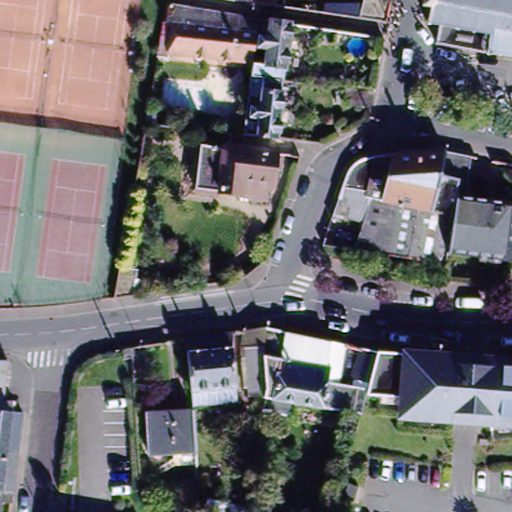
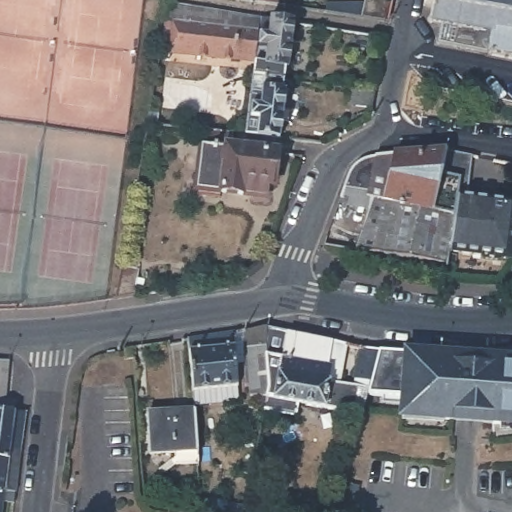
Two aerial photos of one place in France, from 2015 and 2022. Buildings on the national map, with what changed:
unchanged [(203,0),(280,0),(279,10),(203,0)]
unchanged [(394,0),(388,18),(331,11),(332,0),(340,0),(363,3),(364,0),(394,0)]
unchanged [(512,0),(512,58),(508,57),(507,60),(505,59),(505,56),(491,54),(491,56),(488,55),(488,53),(474,50),(474,51),(471,51),(471,50),(457,47),(457,49),(453,48),(454,46),(440,44),(440,45),(437,45),(437,44),(436,44),(436,40),(437,41),(440,27),(439,27),(439,25),(431,24),(431,25),(428,24),(428,23),(426,22),(426,20),(428,20),(431,8),(422,6),(423,0),(512,0)]
unchanged [(204,12),(257,21),(264,22),(262,40),(258,74),(171,57),(175,29),(169,27),(173,6),(204,12)]
unchanged [(264,22),(296,29),(290,74),(288,75),(286,92),(266,90),(267,79),(260,77),(264,41),(262,40),(264,22)]
unchanged [(284,105),(288,105),(282,149),(259,146),(261,130),(254,129),(256,111),(263,112),(266,90),(286,92),(284,105)]
unchanged [(373,95),(370,110),(345,109),(346,92),(373,94),(373,95)]
unchanged [(236,142),(234,156),(247,158),(281,161),(280,179),(277,179),(276,195),(271,195),(270,205),(225,201),(225,199),(230,156),(206,152),(208,138),(236,142)]
unchanged [(230,156),(225,199),(202,196),(206,152),(230,156)]
unchanged [(343,191),(347,179),(348,177),(350,175),(351,174),(352,172),(353,171),(355,170),(357,169),(358,167),(360,166),(361,165),(363,164),(365,163),(367,162),(369,161),(371,161),(374,160),(393,159),(405,158),(443,155),(437,184),(455,187),(454,194),(452,217),(448,253),(446,266),(409,261),(372,255),(355,253),(365,224),(334,216),(340,199),(343,191)]
unchanged [(512,207),(512,262),(448,253),(452,217),(454,194),(455,187),(437,184),(443,155),(470,161),(465,203),(512,207)]
unchanged [(138,271),(134,297),(114,300),(119,268),(138,271)]
unchanged [(268,331),(306,339),(294,402),(291,415),(260,408),(261,405),(254,404),(255,401),(257,394),(249,392),(247,355),(242,355),(243,333),(263,330),(265,330),(268,331)]
unchanged [(192,408),(191,393),(187,340),(238,334),(231,348),(235,387),(237,402),(192,408)]
unchanged [(498,425),(491,425),(490,428),(453,426),(453,423),(436,421),(436,425),(395,422),(396,419),(396,412),(385,411),(385,398),(366,397),(361,416),(322,408),(294,402),(306,339),(336,345),(327,383),(367,392),(369,385),(352,381),(359,351),(376,355),(412,357),(481,362),(488,362),(512,360),(512,433),(499,434),(498,425)]
unchanged [(7,366),(2,406),(13,408),(12,419),(22,420),(21,430),(11,430),(8,455),(18,455),(13,497),(12,507),(1,506),(0,512),(0,366),(7,366)]
unchanged [(172,454),(149,455),(146,415),(192,412),(195,452),(196,462),(173,463),(172,454)]
unchanged [(349,486),(359,489),(355,505),(345,503),(349,486)]
unchanged [(209,503),(222,505),(221,512),(207,512),(209,503)]
unchanged [(244,508),(244,512),(227,512),(227,505),(244,508)]

